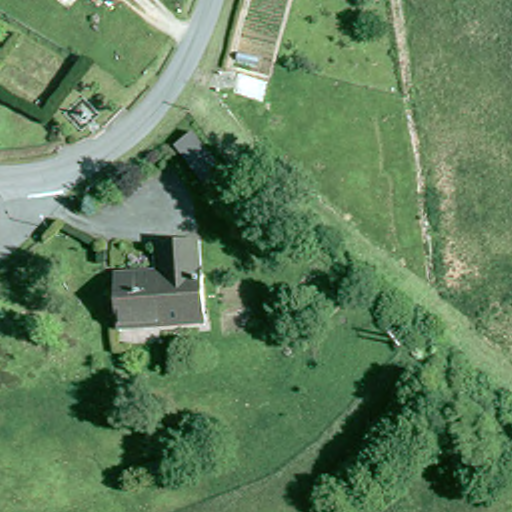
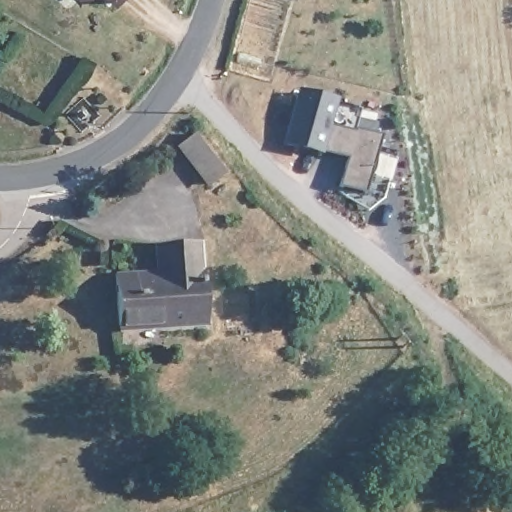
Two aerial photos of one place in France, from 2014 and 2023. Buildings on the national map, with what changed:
unchanged [(106,0),(113,0),(111,3),(106,0)]
demolished [(270,84),(265,104),(235,94),(240,75),(270,84)]
new [(356,132),(357,129),(380,135),(366,191),(340,185),(346,159),(322,152),(282,143),(297,88),(339,100),(332,125),(356,132)]
unchanged [(211,185),(180,145),(194,134),(225,173),(211,185)]
unchanged [(215,327),(171,330),(170,323),(129,326),(126,278),(125,276),(126,275),(127,273),(166,270),(165,248),(166,246),(179,245),(211,243),(215,327)]

